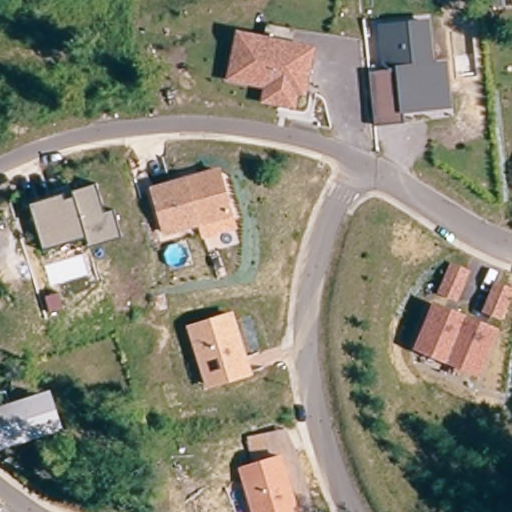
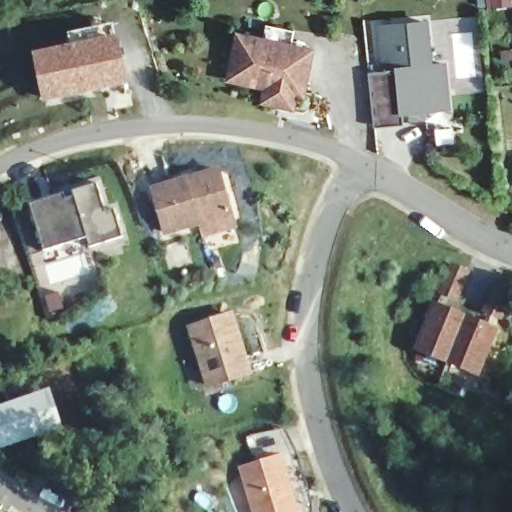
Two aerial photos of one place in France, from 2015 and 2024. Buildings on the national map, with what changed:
unchanged [(406,123),(377,126),(370,68),(382,67),(377,24),(430,20),(435,61),(449,61),(455,110),(405,114),(406,123)]
new [(44,103),(34,56),(74,46),(71,36),(116,26),(119,37),(131,86),(44,103)]
unchanged [(262,101),(264,86),(227,78),(236,30),(316,47),(303,111),(262,101)]
unchanged [(150,186),(221,169),(234,217),(165,236),(150,186)]
unchanged [(89,237),(46,253),(32,204),(99,185),(107,213),(117,210),(125,238),(92,248),(89,237)]
unchanged [(470,271),(457,303),(437,294),(452,262),(470,271)]
unchanged [(512,288),(512,296),(502,321),(482,312),(495,281),(512,288)]
unchanged [(500,329),(480,377),(412,350),(432,301),(500,329)]
unchanged [(186,326),(234,311),(255,375),(207,390),(186,326)]
unchanged [(65,430),(0,452),(0,406),(51,389),(65,430)]
unchanged [(240,467),(284,455),(303,512),(253,512),(240,467)]

